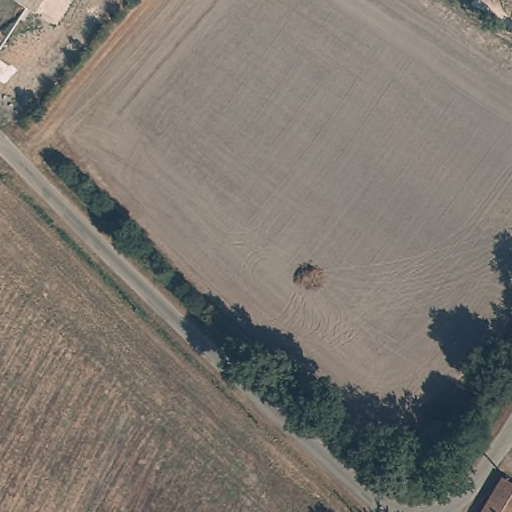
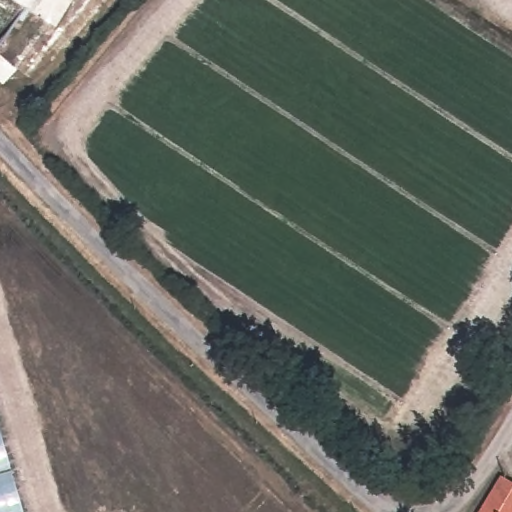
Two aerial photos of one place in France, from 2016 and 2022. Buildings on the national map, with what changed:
unchanged [(21,0),(37,0),(32,7),(21,0)]
new [(0,429),(24,512),(0,512),(0,429)]
unchanged [(507,473),(512,476),(512,512),(482,512),(507,473)]

